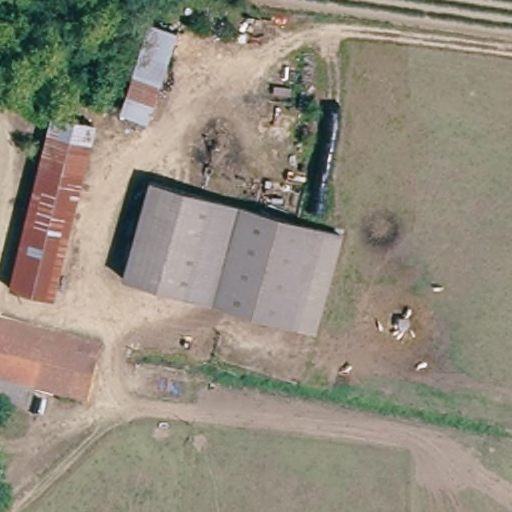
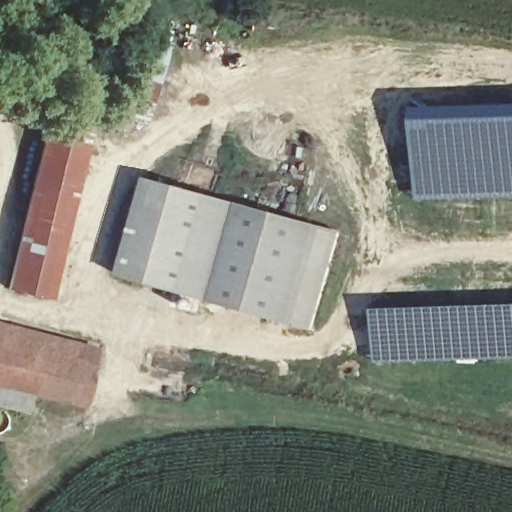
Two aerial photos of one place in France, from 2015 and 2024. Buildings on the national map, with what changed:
unchanged [(0,2),(0,0),(2,0),(1,2),(0,2)]
unchanged [(140,120),(117,109),(155,26),(178,37),(140,120)]
new [(481,107),(482,115),(512,112),(512,199),(502,199),(421,202),(417,160),(415,109),(481,107)]
unchanged [(28,181),(36,126),(79,132),(71,186),(71,196),(56,309),(26,305),(12,302),(28,181)]
unchanged [(199,302),(112,278),(139,182),(228,206),(199,302)]
unchanged [(199,302),(228,206),(301,226),(326,234),(297,330),(272,322),(199,302)]
new [(512,307),(512,359),(375,362),(374,311),(512,307)]
unchanged [(98,353),(95,368),(86,405),(42,395),(25,391),(20,407),(0,403),(0,335),(7,336),(39,342),(98,353)]

